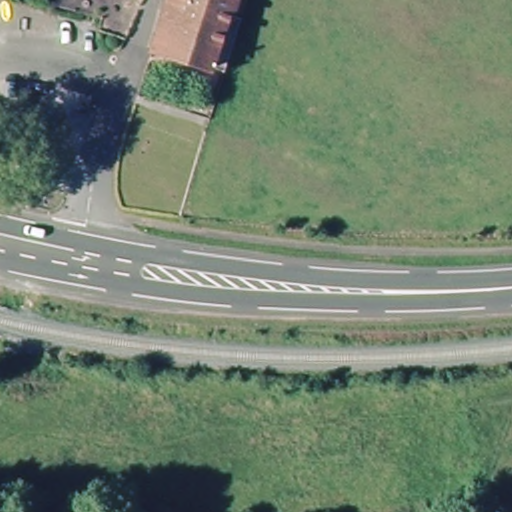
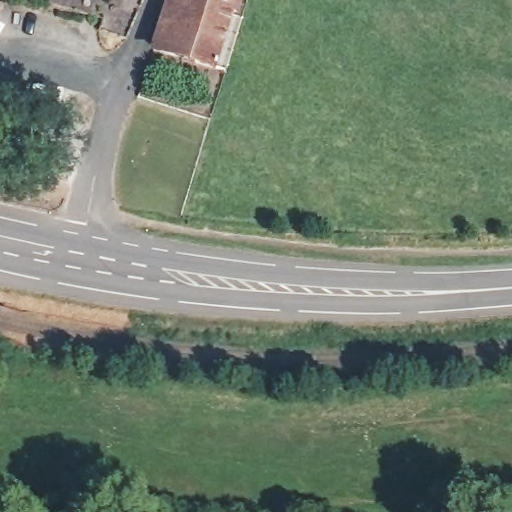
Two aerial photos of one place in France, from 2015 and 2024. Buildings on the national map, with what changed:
unchanged [(216,72),(148,49),(165,0),(230,0),(225,15),(236,20),(229,37),(216,72)]

